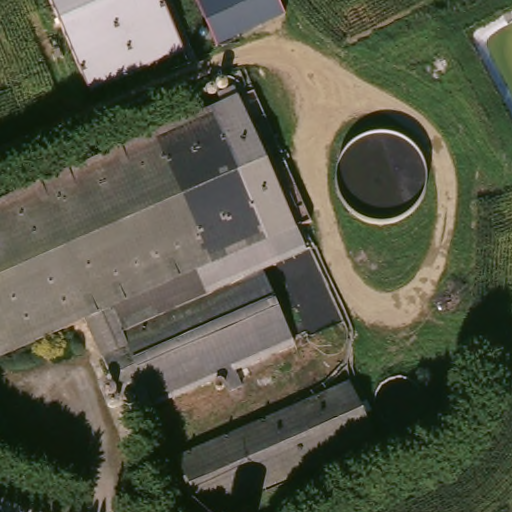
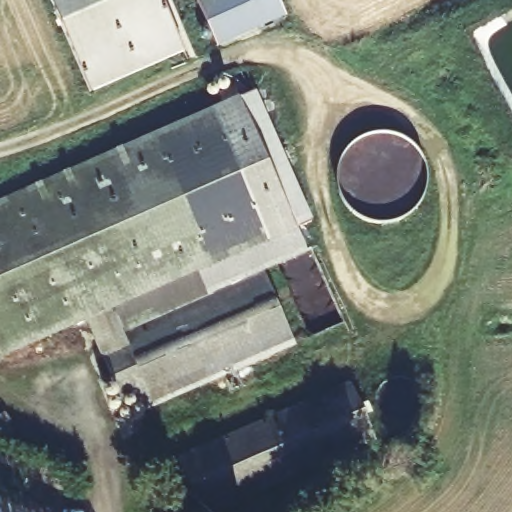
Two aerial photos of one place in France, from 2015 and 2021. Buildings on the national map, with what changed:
unchanged [(92,100),(50,0),(160,0),(184,61),(92,100)]
unchanged [(203,0),(283,0),(289,15),(221,44),(203,0)]
unchanged [(225,380),(218,362),(150,391),(143,375),(119,387),(94,335),(84,315),(0,350),(0,196),(216,101),(243,90),(296,217),(270,229),(197,264),(207,285),(261,261),(294,330),(233,355),(241,373),(225,380)]
unchanged [(178,462),(350,385),(375,441),(214,512),(200,512),(191,491),(172,499),(164,481),(183,473),(178,462)]

